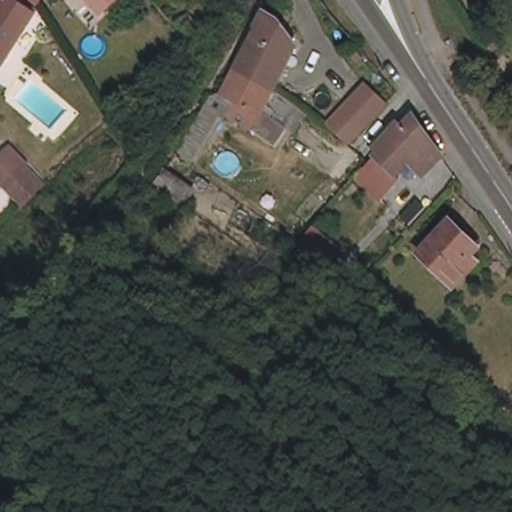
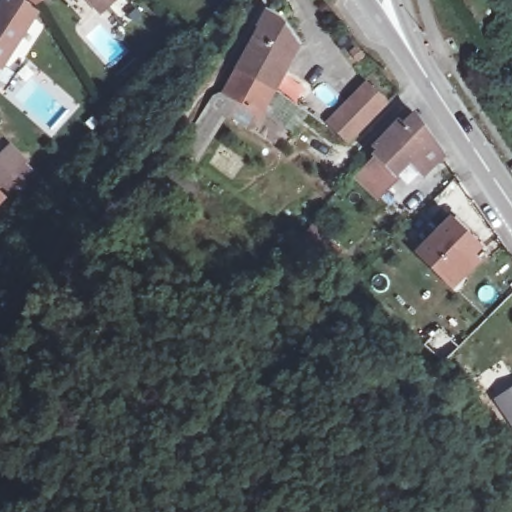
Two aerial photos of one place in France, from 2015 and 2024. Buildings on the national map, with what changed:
unchanged [(39,12),(0,61),(0,12),(10,0),(23,0),(39,12)]
unchanged [(40,2),(36,0),(42,0),(40,2)]
unchanged [(94,0),(110,0),(103,8),(94,0)]
unchanged [(276,77),(261,98),(256,105),(229,84),(250,58),(270,30),(265,25),(276,9),(294,17),(303,40),(276,77)]
unchanged [(348,141),(330,122),(371,82),(389,101),(348,141)]
unchanged [(229,84),(256,105),(261,98),(274,108),(256,135),(233,119),(199,164),(181,152),(229,84)]
unchanged [(417,162),(399,177),(379,156),(421,116),(421,115),(429,127),(451,160),(430,179),(417,162)]
unchanged [(18,195),(12,188),(0,176),(0,145),(8,137),(21,156),(34,170),(39,174),(20,193),(18,195)]
unchanged [(379,156),(399,177),(371,205),(353,185),(379,156)]
new [(0,206),(0,191),(8,199),(0,206)]
unchanged [(446,277),(414,242),(451,209),(483,244),(446,277)]
new [(493,398),(512,386),(512,427),(493,398)]

